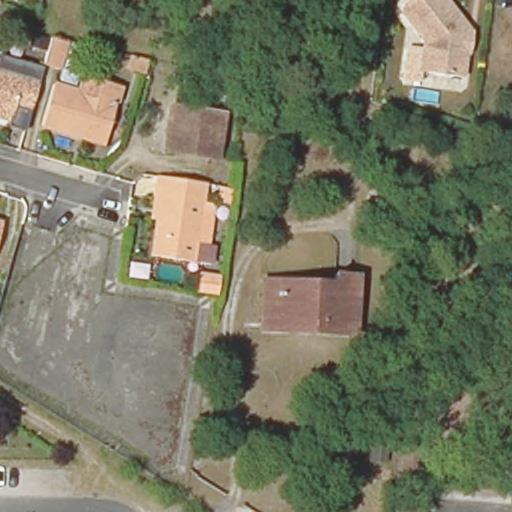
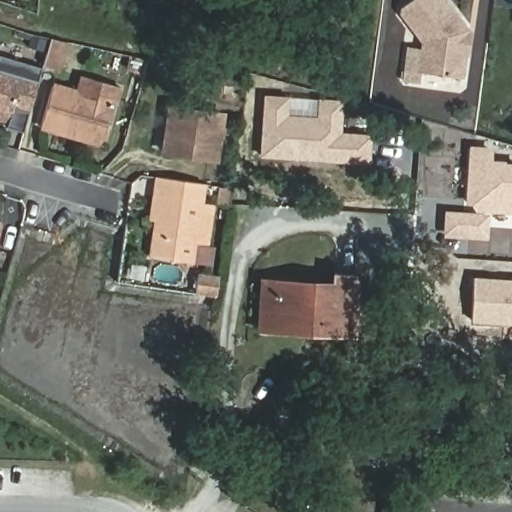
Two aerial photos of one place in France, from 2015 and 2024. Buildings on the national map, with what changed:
unchanged [(402,14),(404,6),(412,0),(445,0),(468,30),(462,77),(420,72),(424,42),(402,14)]
unchanged [(65,47),(58,73),(39,67),(46,43),(65,47)]
unchanged [(39,81),(30,112),(13,107),(9,122),(0,120),(0,70),(39,81)]
unchanged [(102,150),(41,132),(54,90),(78,96),(83,80),(120,91),(115,107),(102,150)]
new [(286,97),(284,117),(317,119),(319,100),(340,102),(340,134),(371,135),(369,164),(260,156),(263,95),(286,97)]
unchanged [(164,152),(170,107),(223,115),(217,160),(164,152)]
new [(471,203),(466,202),(469,145),(492,147),(492,160),(505,161),(505,162),(512,163),(512,214),(475,210),(471,203)]
unchanged [(150,223),(156,181),(162,182),(206,188),(194,267),(151,261),(156,224),(150,223)]
unchanged [(217,203),(220,186),(232,187),(229,205),(217,203)]
new [(487,240),(443,237),(445,210),(489,214),(487,240)]
unchanged [(2,223),(0,230),(0,222),(2,223)]
new [(474,276),(512,279),(512,324),(471,321),(474,276)]
unchanged [(268,330),(270,286),(328,290),(328,280),(352,281),(349,340),(315,337),(315,331),(268,330)]

